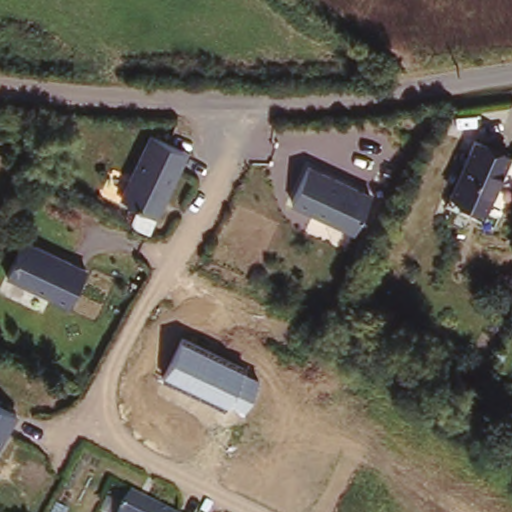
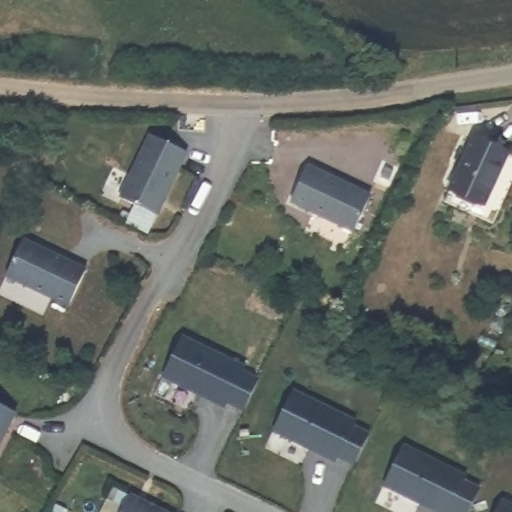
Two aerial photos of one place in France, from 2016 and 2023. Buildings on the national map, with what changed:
unchanged [(186,151),(159,215),(121,197),(149,134),(186,151)]
unchanged [(483,201),(451,190),(470,136),(504,147),(483,201)]
unchanged [(370,192),(354,232),(292,202),(309,164),(370,192)]
unchanged [(24,240),(85,269),(69,305),(6,275),(24,240)]
unchanged [(258,376),(240,421),(165,382),(186,342),(258,376)]
new [(294,393),(356,423),(354,428),(369,435),(354,465),(339,457),(336,462),(274,432),(294,393)]
unchanged [(15,410),(0,440),(0,404),(15,410)]
new [(467,478),(464,482),(480,490),(469,512),(436,512),(385,487),(405,448),(467,478)]
unchanged [(118,512),(126,496),(161,512),(118,512)]
new [(512,506),(512,512),(496,512),(502,501),(512,506)]

